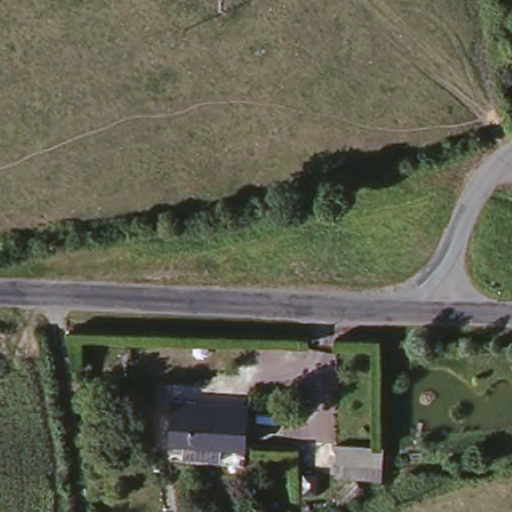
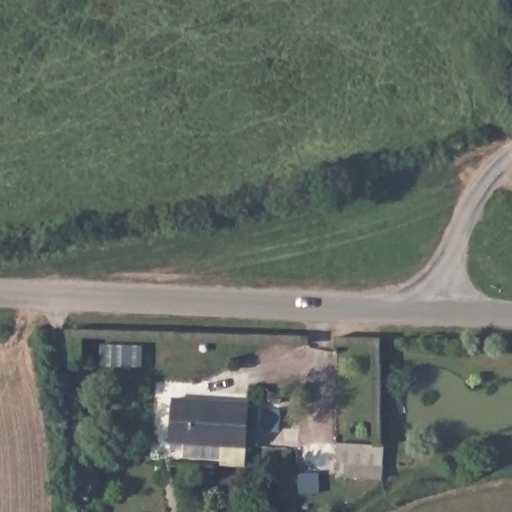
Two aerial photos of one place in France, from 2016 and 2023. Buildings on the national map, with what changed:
unchanged [(200,392),(200,401),(252,404),(250,446),(173,441),(174,392),(200,392)]
unchanged [(378,445),(377,481),(340,481),(337,443),(378,445)]

